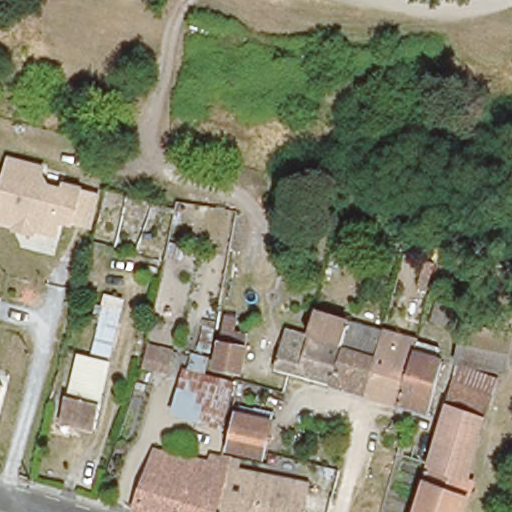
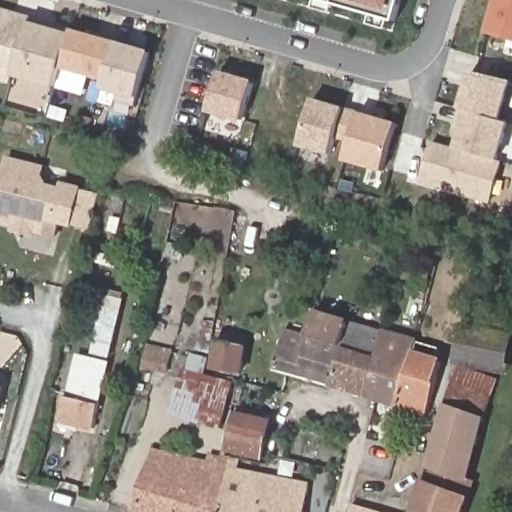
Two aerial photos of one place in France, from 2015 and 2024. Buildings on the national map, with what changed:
new [(369,13),(332,2),(328,12),(311,7),(313,0),(400,0),(395,21),(387,19),(384,29),(366,23),(369,13)]
new [(512,0),(512,39),(487,33),(495,0),(512,0)]
new [(0,78),(0,9),(16,13),(31,17),(24,41),(12,82),(0,78)]
new [(31,17),(50,22),(56,24),(74,29),(58,85),(15,73),(31,17)]
new [(107,77),(64,65),(74,29),(117,41),(107,77)]
new [(144,103),(116,96),(117,89),(105,86),(107,77),(117,41),(159,51),(144,103)]
new [(512,81),(512,83),(502,120),(463,109),(473,70),(512,81)]
new [(220,72),(254,81),(244,119),(209,109),(220,72)]
new [(312,99),(358,111),(351,139),(336,135),(331,152),(300,144),(312,99)]
new [(463,109),(502,120),(510,122),(499,160),(460,148),(466,127),(458,126),(463,109)]
new [(351,139),(358,111),(397,122),(383,170),(345,158),(351,139)]
new [(430,140),(499,160),(487,200),(467,194),(468,190),(459,187),(458,192),(418,180),(430,140)]
unchanged [(92,230),(61,223),(57,239),(35,234),(34,236),(12,232),(13,227),(0,224),(0,192),(9,157),(47,167),(45,175),(50,183),(61,186),(62,182),(82,186),(82,189),(102,195),(92,230)]
unchanged [(420,312),(403,308),(408,288),(425,292),(420,312)]
unchanged [(459,303),(452,327),(427,320),(435,295),(459,303)]
unchanged [(275,367),(287,326),(305,331),(308,332),(317,305),(350,316),(349,318),(382,327),(364,392),(297,372),(275,367)]
unchanged [(91,360),(104,309),(121,312),(98,410),(100,411),(94,435),(61,427),(66,403),(69,403),(79,357),(91,360)]
unchanged [(510,322),(507,339),(512,340),(512,344),(504,380),(456,370),(467,312),(510,322)]
unchanged [(237,319),(234,333),(247,337),(239,377),(227,372),(213,368),(225,316),(237,319)]
unchanged [(364,392),(382,327),(415,337),(413,340),(416,341),(398,402),(377,396),(364,392)]
unchanged [(169,372),(140,367),(146,337),(172,341),(169,372)]
unchanged [(416,341),(439,347),(431,377),(432,378),(424,409),(398,402),(416,341)]
unchanged [(185,372),(232,384),(222,426),(172,415),(185,372)]
unchanged [(496,385),(466,502),(462,512),(414,512),(455,372),(496,385)]
unchanged [(0,401),(0,383),(5,384),(0,401)]
unchanged [(272,422),(262,459),(227,451),(236,412),(272,422)]
unchanged [(187,467),(190,458),(209,463),(211,456),(226,459),(230,460),(220,512),(173,512),(187,467)]
unchanged [(152,457),(187,467),(173,512),(134,512),(152,457)]
unchanged [(230,460),(238,461),(237,471),(308,485),(304,512),(220,512),(230,460)]
unchanged [(512,475),(512,492),(503,491),(507,473),(512,475)]
new [(353,504),(382,512),(351,512),(353,504)]

